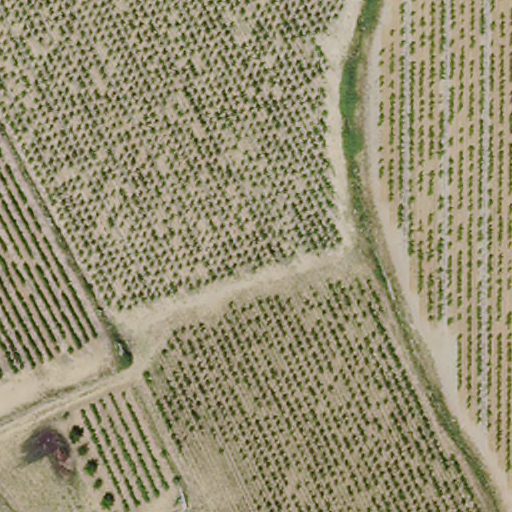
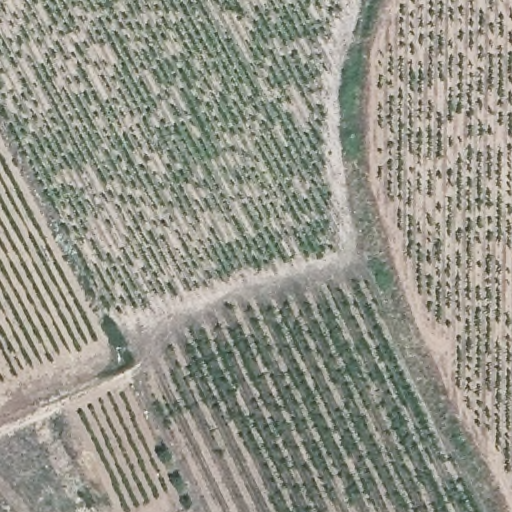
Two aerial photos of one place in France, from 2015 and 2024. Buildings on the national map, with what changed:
[]

